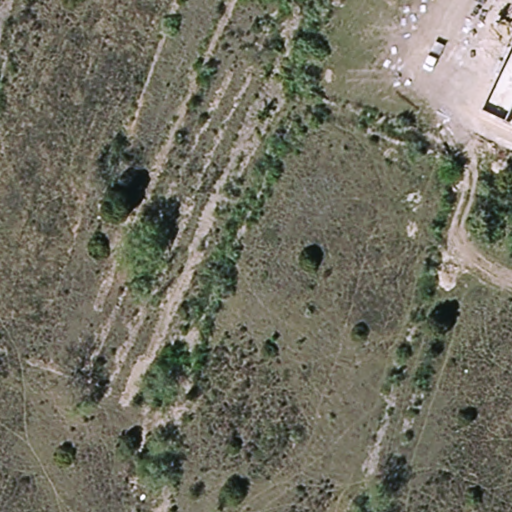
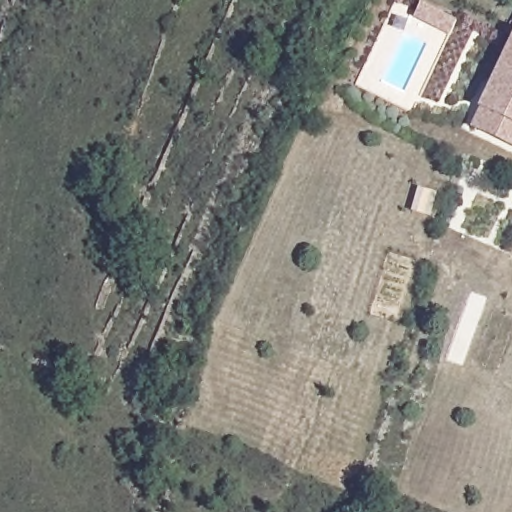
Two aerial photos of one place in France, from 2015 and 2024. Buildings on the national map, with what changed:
new [(472,129),(480,111),(512,38),(512,146),(472,129)]
demolished [(479,112),(510,38),(512,39),(512,112),(511,115),(506,125),(479,112)]

